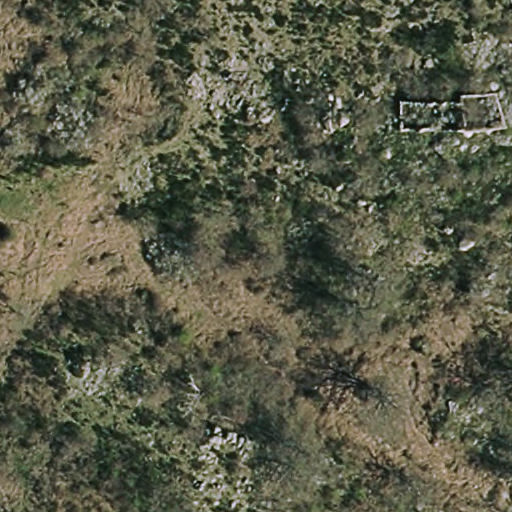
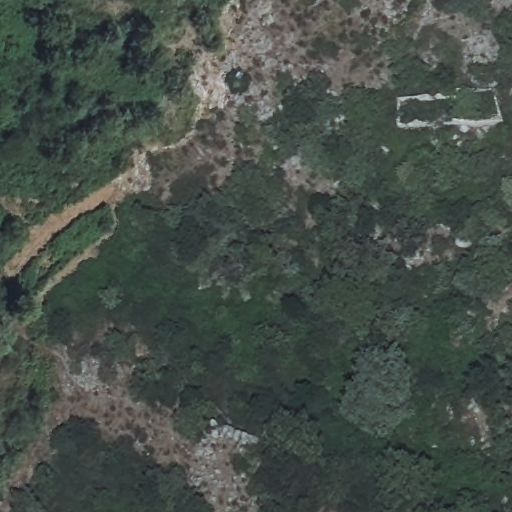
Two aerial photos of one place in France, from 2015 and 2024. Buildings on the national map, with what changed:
unchanged [(317,188),(349,189),(342,221),(312,220),(317,188)]

